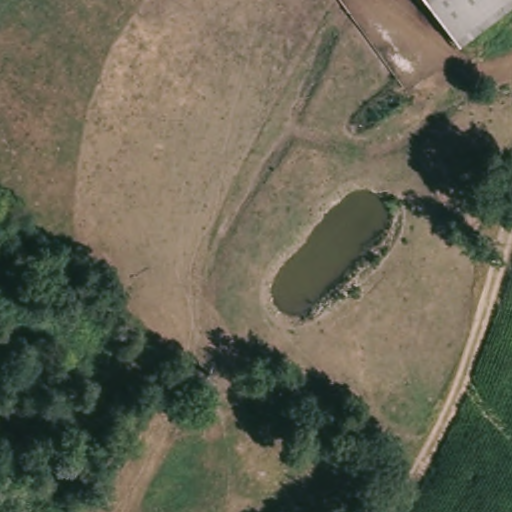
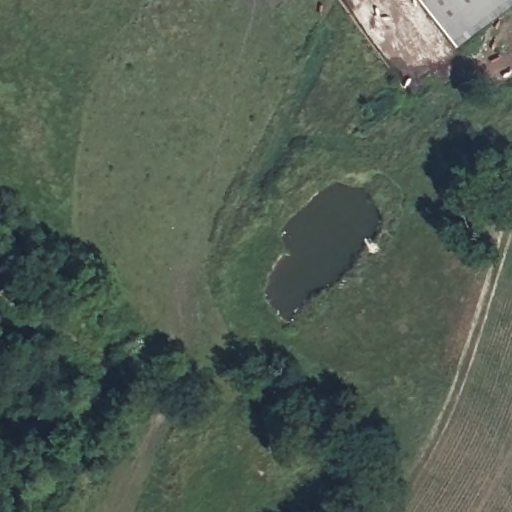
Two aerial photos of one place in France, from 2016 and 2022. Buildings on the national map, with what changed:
unchanged [(426,0),(512,0),(512,3),(459,43),(426,0)]

